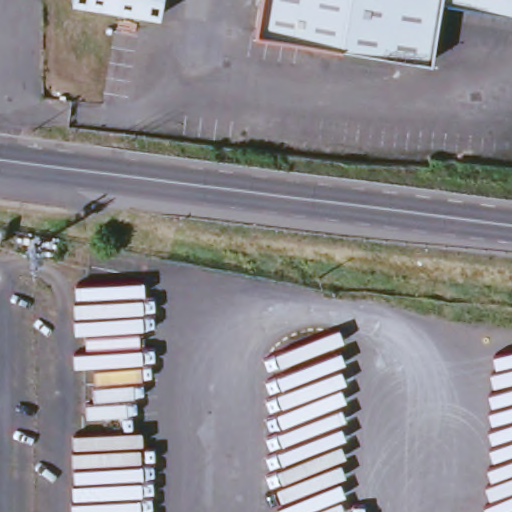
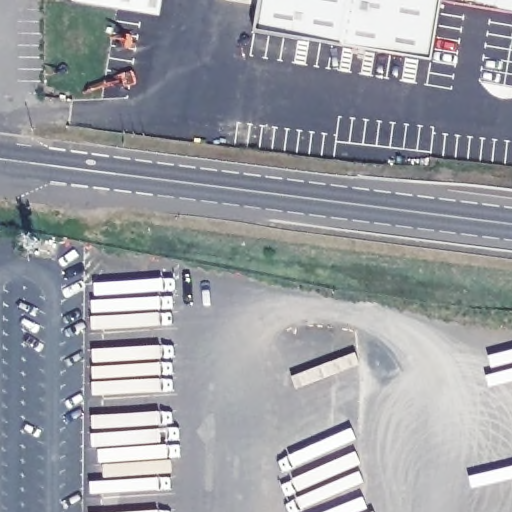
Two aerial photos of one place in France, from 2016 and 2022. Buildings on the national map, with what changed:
unchanged [(68,0),(158,0),(156,15),(68,2),(68,0)]
unchanged [(259,0),(440,0),(431,56),(255,26),(259,0)]
unchanged [(512,0),(512,7),(470,0),(512,0)]

